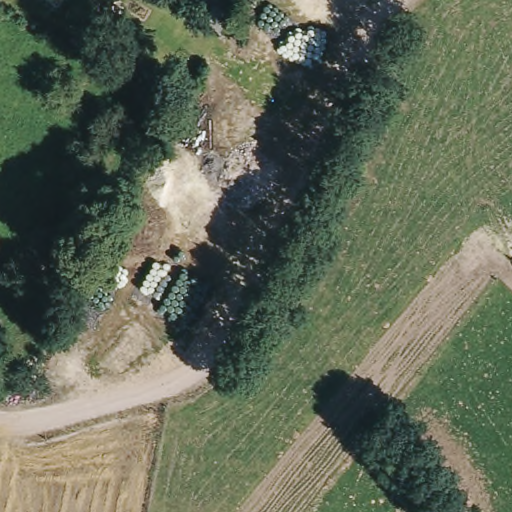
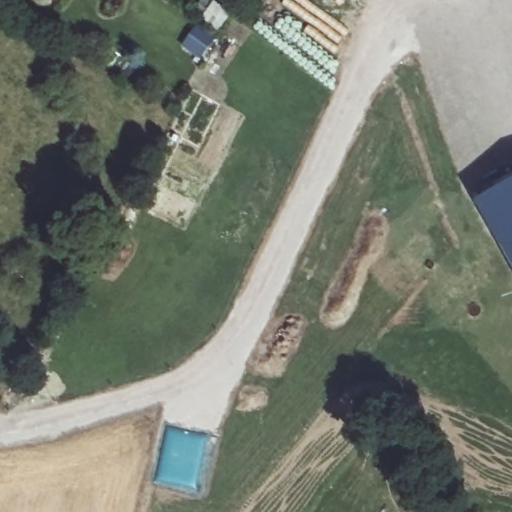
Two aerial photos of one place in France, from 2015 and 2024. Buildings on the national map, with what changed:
unchanged [(195,9),(200,0),(218,0),(232,11),(219,29),(195,9)]
new [(512,181),(512,266),(476,201),(512,181)]

